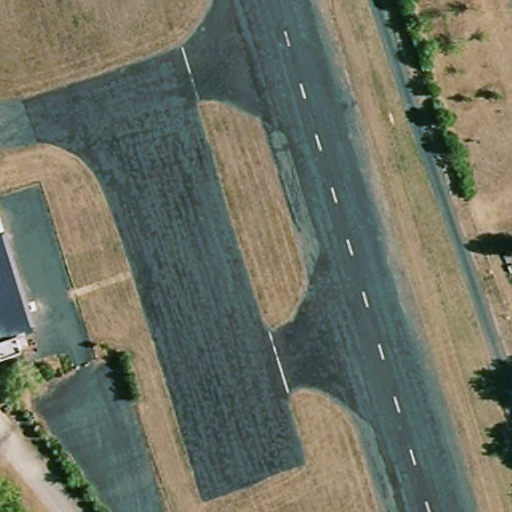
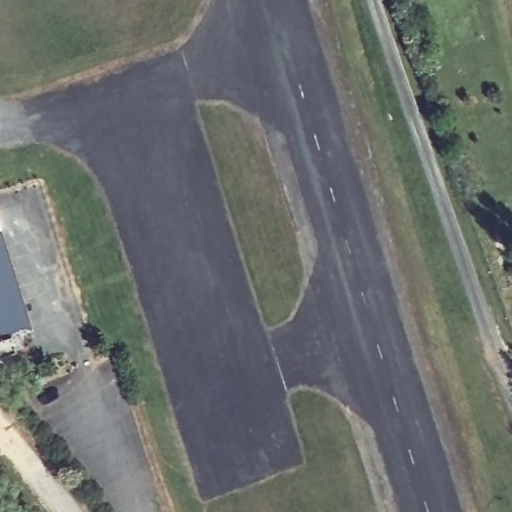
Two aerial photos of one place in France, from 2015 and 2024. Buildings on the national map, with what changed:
unchanged [(28,330),(13,334),(19,353),(4,356),(0,344),(0,215),(28,330)]

